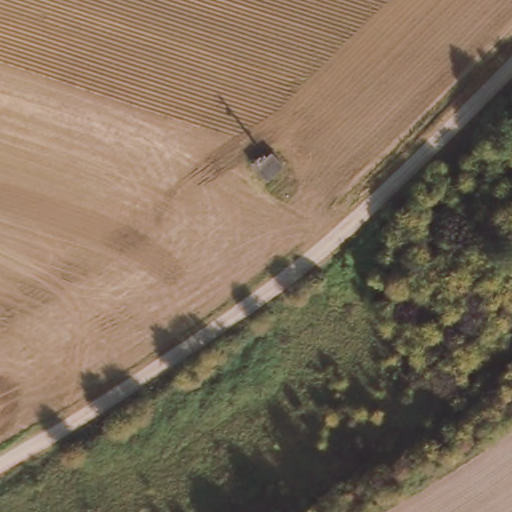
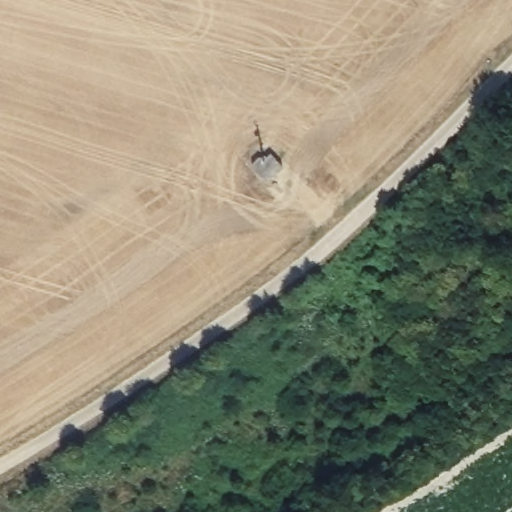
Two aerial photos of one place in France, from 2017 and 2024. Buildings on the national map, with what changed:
unchanged [(263,182),(254,165),(276,153),(287,171),(263,182)]

